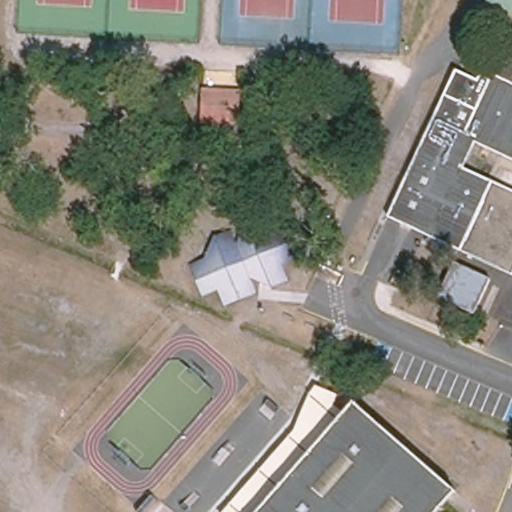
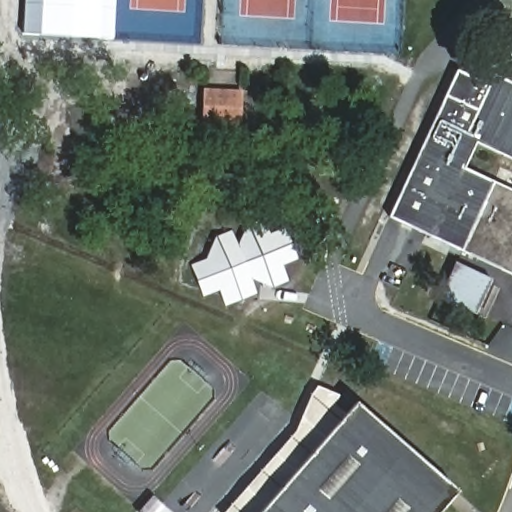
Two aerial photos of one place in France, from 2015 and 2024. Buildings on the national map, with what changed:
new [(22,33),(24,0),(114,0),(111,38),(22,33)]
unchanged [(492,0),(497,0),(512,7),(512,51),(492,0)]
unchanged [(497,0),(512,0),(512,7),(497,0)]
unchanged [(463,246),(391,211),(461,65),(481,75),(486,64),(512,54),(512,152),(478,136),(465,164),(512,186),(512,269),(463,246)]
unchanged [(202,109),(203,94),(240,95),(239,110),(202,109)]
unchanged [(217,235),(240,244),(247,227),(292,244),(273,287),(252,279),(244,298),(199,279),(217,235)]
unchanged [(492,279),(476,313),(441,297),(457,263),(492,279)]
unchanged [(259,512),(224,512),(294,433),(313,387),(339,394),(335,404),(347,413),(259,512)]
unchanged [(356,402),(456,492),(438,512),(259,512),(356,402)]

